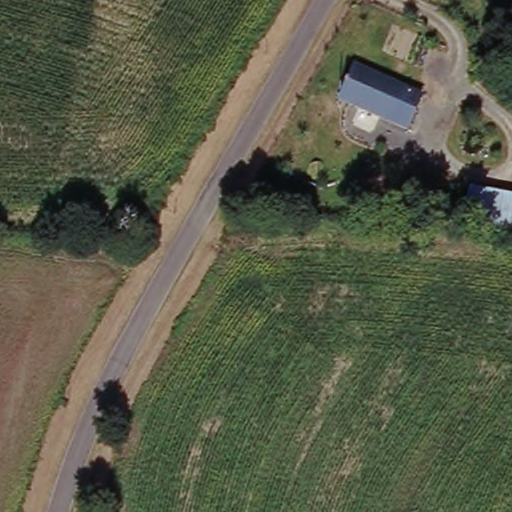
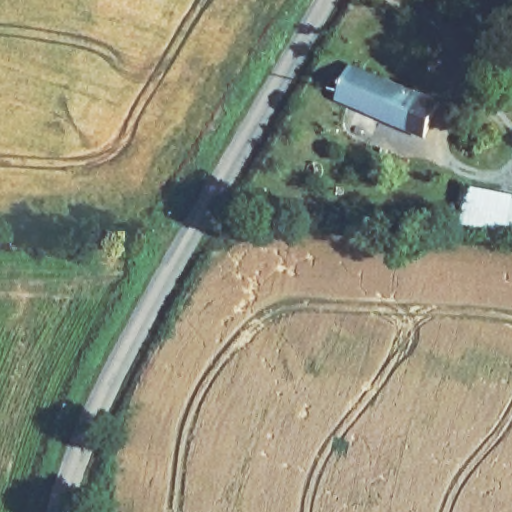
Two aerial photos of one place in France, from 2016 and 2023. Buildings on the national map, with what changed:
unchanged [(352,67),(429,93),(415,130),(338,102),(352,67)]
unchanged [(468,183),(512,193),(512,234),(462,224),(468,183)]

